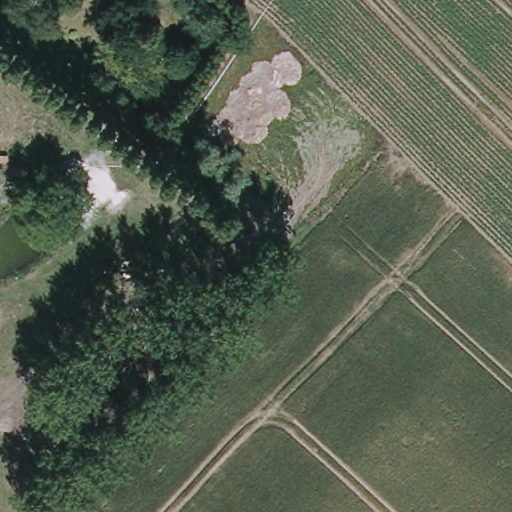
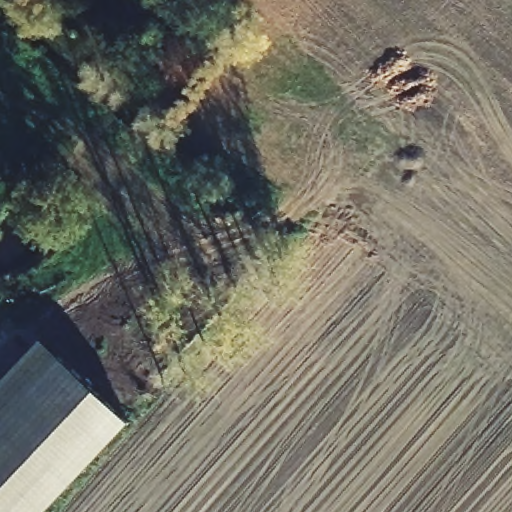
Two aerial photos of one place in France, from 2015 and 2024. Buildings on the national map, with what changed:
new [(129,421),(44,512),(0,512),(0,382),(41,339),(129,421)]

